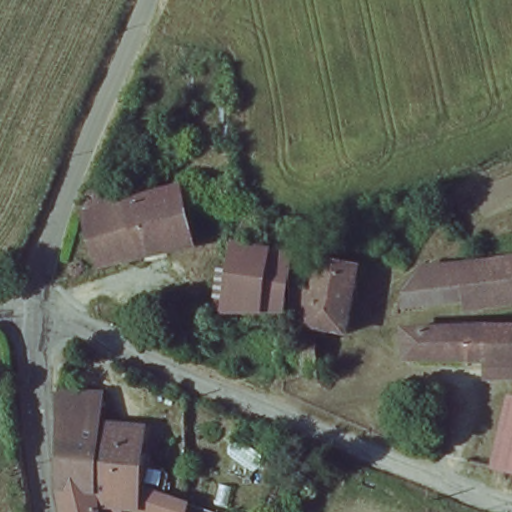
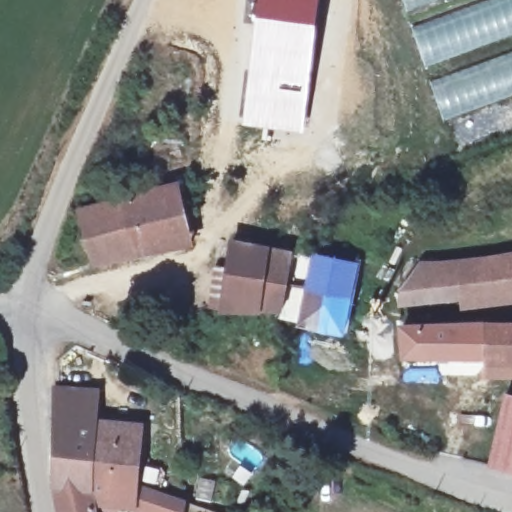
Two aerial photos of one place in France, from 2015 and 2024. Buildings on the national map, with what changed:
new [(257,0),(320,0),(304,132),(243,124),(254,34),(257,0)]
new [(406,11),(402,0),(442,0),(436,3),(406,11)]
new [(490,0),(512,0),(512,34),(425,66),(412,28),(463,11),(490,0)]
new [(443,121),(429,81),(512,51),(512,95),(443,121)]
unchanged [(182,187),(186,198),(173,203),(184,251),(96,274),(79,218),(77,200),(80,194),(116,185),(122,205),(173,190),(182,187)]
unchanged [(244,211),(267,216),(267,247),(293,253),(286,313),(259,316),(222,314),(209,310),(215,270),(227,271),(235,244),(244,211)]
unchanged [(425,266),(506,252),(512,251),(512,296),(468,301),(408,304),(407,290),(425,266)]
unchanged [(308,259),(360,266),(344,334),(292,319),(308,259)]
unchanged [(152,343),(155,320),(187,323),(184,351),(152,343)]
unchanged [(484,380),(484,365),(405,362),(402,322),(512,320),(512,380),(484,380)]
demolished [(313,342),(318,378),(295,381),(293,347),(313,342)]
unchanged [(132,507),(103,500),(103,512),(62,512),(59,496),(57,445),(56,391),(60,392),(99,398),(100,425),(143,430),(136,486),(186,502),(183,512),(154,512),(132,507)]
unchanged [(489,467),(505,396),(512,397),(512,472),(489,467)]

